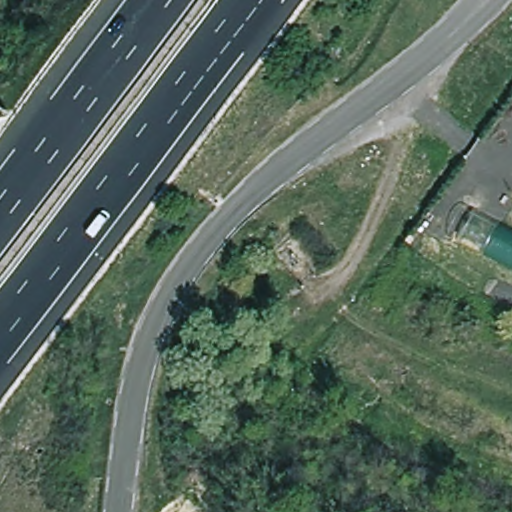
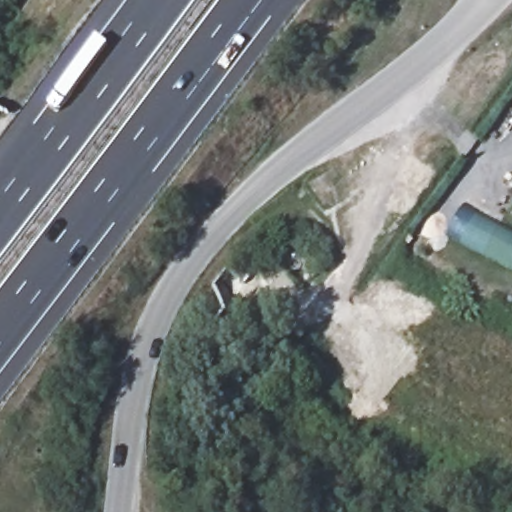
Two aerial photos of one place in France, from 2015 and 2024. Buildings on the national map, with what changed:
unchanged [(512,230),(512,265),(456,237),(471,209),(512,230)]

